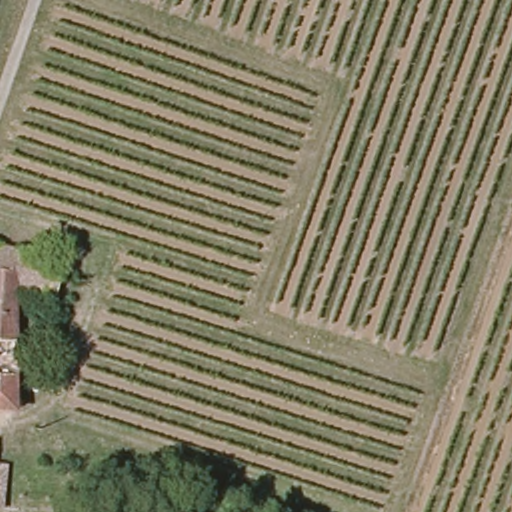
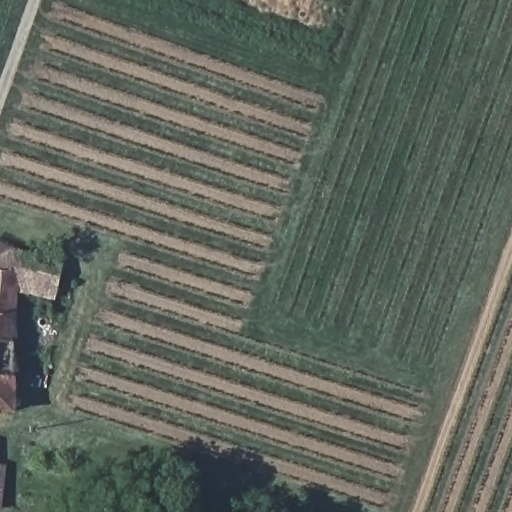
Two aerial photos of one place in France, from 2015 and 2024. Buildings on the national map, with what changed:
unchanged [(0,372),(0,244),(56,258),(57,253),(64,253),(59,294),(16,292),(16,373),(0,372)]
unchanged [(16,373),(16,408),(0,407),(0,372),(16,373)]
unchanged [(15,442),(14,457),(0,456),(0,441),(15,442)]

